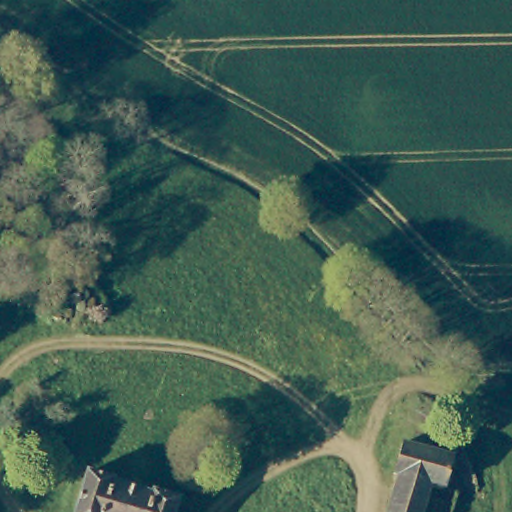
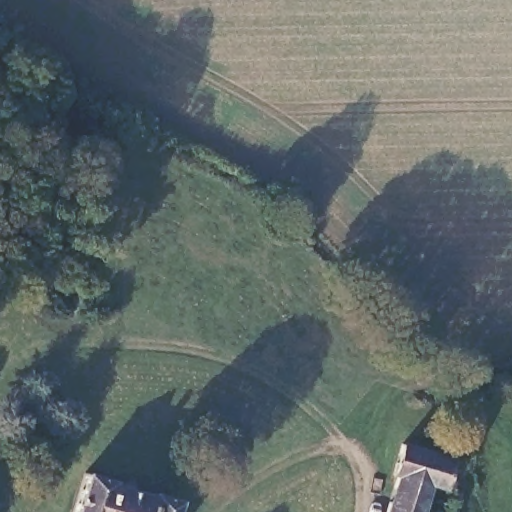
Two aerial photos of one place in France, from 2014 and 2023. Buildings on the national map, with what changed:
unchanged [(393,455),(399,427),(400,425),(443,433),(454,435),(447,466),(459,469),(449,512),(387,512),(398,457),(393,455)]
unchanged [(177,512),(73,512),(86,467),(116,475),(114,484),(150,495),(152,488),(182,495),(177,512)]

